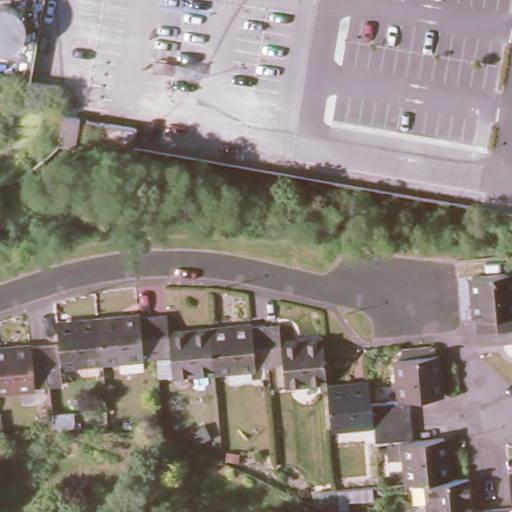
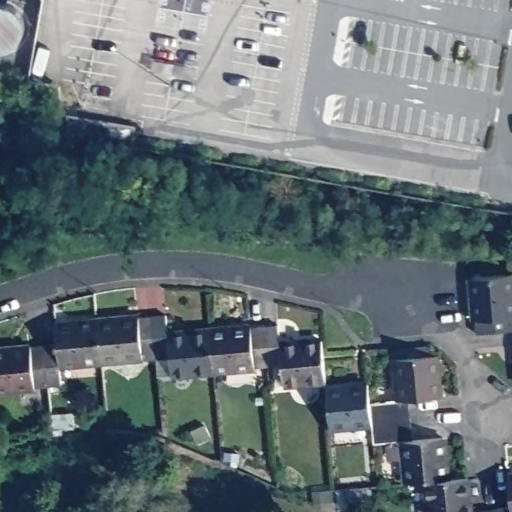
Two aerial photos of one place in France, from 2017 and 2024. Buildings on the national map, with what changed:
unchanged [(59,141),(63,106),(80,108),(78,134),(75,134),(74,143),(59,141)]
unchanged [(136,126),(133,139),(131,146),(82,134),(87,114),(136,126)]
unchanged [(511,276),(512,288),(512,332),(479,334),(473,280),(506,277),(511,276)]
unchanged [(168,312),(171,333),(211,329),(214,369),(173,372),(172,353),(158,354),(154,314),(168,312)]
unchanged [(141,315),(154,314),(158,354),(103,359),(99,319),(141,315)]
unchanged [(103,359),(60,363),(63,382),(49,383),(46,343),(59,341),(58,323),(99,319),(103,359)]
unchanged [(283,363),(269,364),(266,325),(279,323),(281,343),(323,339),(324,348),(326,379),(285,382),(283,363)]
unchanged [(211,329),(253,326),(266,325),(269,364),(214,369),(211,329)]
unchanged [(31,344),(46,343),(49,383),(0,388),(0,348),(31,344)]
unchanged [(400,397),(396,356),(402,356),(401,347),(432,345),(432,354),(437,353),(440,394),(409,396),(411,410),(371,413),(369,400),(400,397)]
unchanged [(371,421),(331,425),(327,385),(368,381),(369,400),(371,413),(411,410),(412,424),(373,427),(371,421)]
unchanged [(374,442),(373,427),(412,424),(413,438),(444,435),(449,479),(427,480),(408,482),(404,439),(374,442)]
unchanged [(498,507),(511,506),(509,474),(512,474),(512,512),(498,512),(498,507)]
unchanged [(467,477),(469,509),(483,508),(483,512),(430,512),(427,480),(449,479),(467,477)]
unchanged [(498,507),(498,512),(483,512),(483,508),(498,507)]

